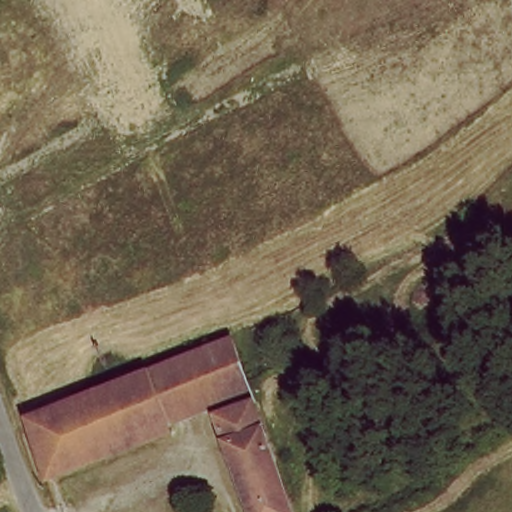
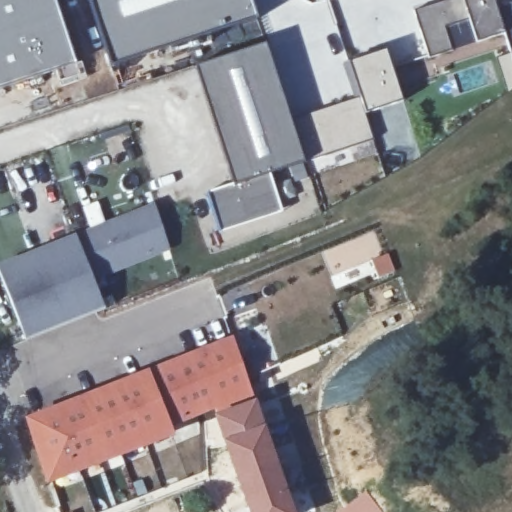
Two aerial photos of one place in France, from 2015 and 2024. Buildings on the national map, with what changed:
new [(77,63),(0,88),(0,0),(56,0),(77,63)]
new [(256,17),(112,65),(91,0),(250,0),(256,17)]
new [(430,56),(417,11),(448,0),(510,0),(511,2),(512,2),(512,56),(504,32),(476,42),(451,50),(430,56)]
new [(265,45),(304,163),(270,173),(283,212),(220,232),(208,193),(233,184),(197,67),(265,45)]
new [(356,101),(345,63),(386,50),(403,101),(366,114),(374,140),(304,163),(290,121),(356,101)]
new [(0,264),(76,234),(153,204),(170,252),(94,278),(104,309),(27,339),(0,272),(0,264)]
unchanged [(209,403),(161,420),(142,369),(225,335),(248,401),(213,413),(209,403)]
unchanged [(161,420),(164,430),(41,476),(20,418),(142,369),(161,420)]
unchanged [(286,512),(247,512),(213,413),(248,401),(286,512)]

